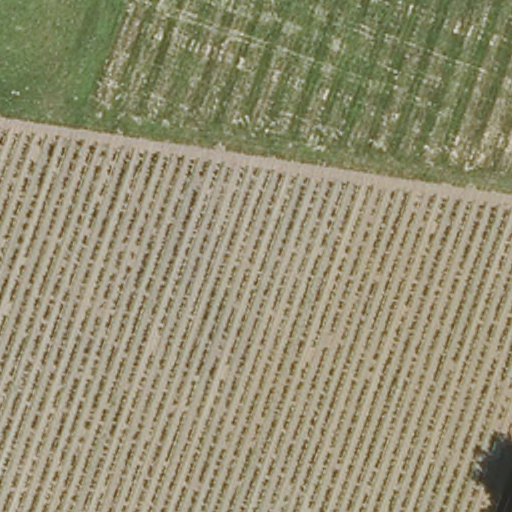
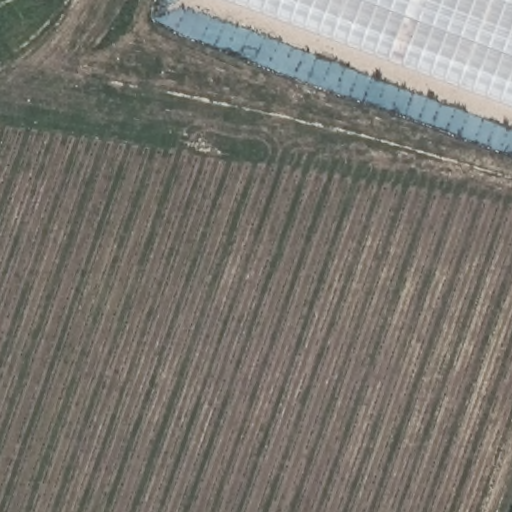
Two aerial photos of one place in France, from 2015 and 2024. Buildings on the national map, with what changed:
new [(512,107),(224,0),(512,0),(512,107)]

